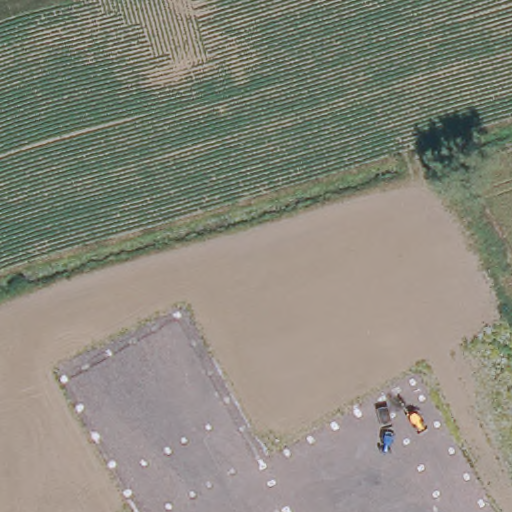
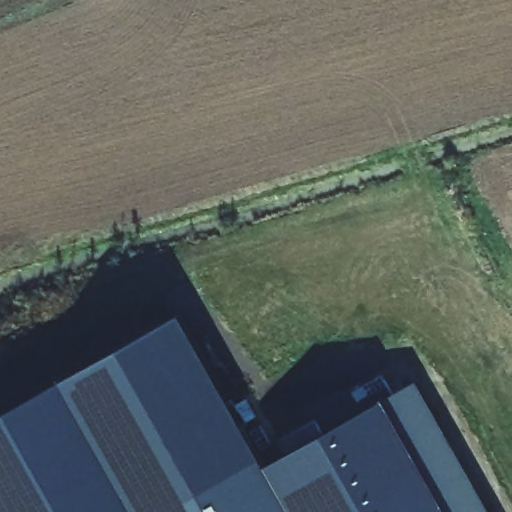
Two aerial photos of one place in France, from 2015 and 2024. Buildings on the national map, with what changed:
new [(0,418),(69,376),(186,309),(272,461),(422,377),(499,512),(0,512),(0,418)]

